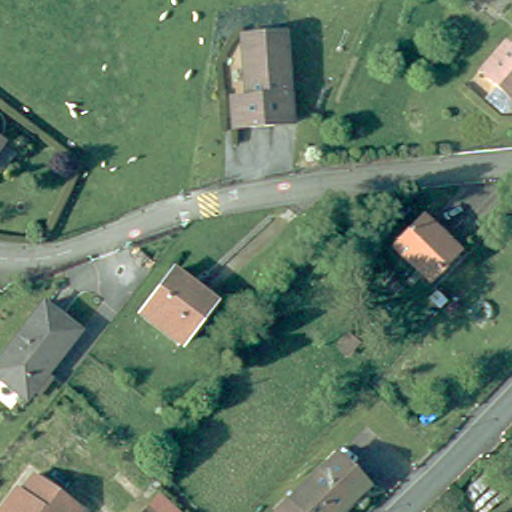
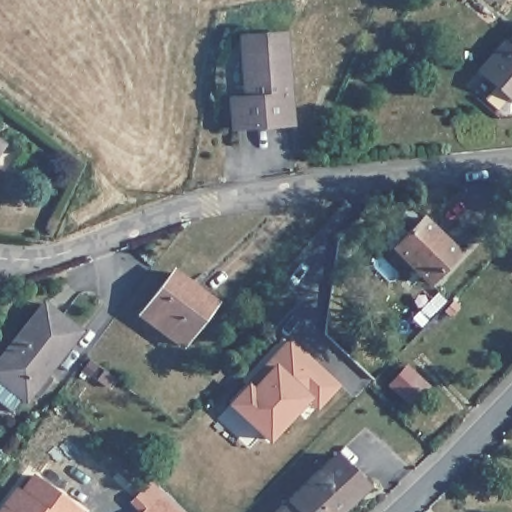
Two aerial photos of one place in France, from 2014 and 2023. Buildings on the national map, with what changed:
unchanged [(234,130),(233,101),(246,101),(244,52),(244,39),(287,37),(288,51),(291,128),(234,130)]
unchanged [(486,96),(498,81),(481,68),(504,39),(509,43),(512,39),(512,97),(503,109),(486,96)]
unchanged [(1,150),(0,151),(0,149),(1,150)]
unchanged [(422,215),(459,249),(431,281),(394,247),(422,215)]
unchanged [(209,302),(191,324),(196,329),(183,346),(142,314),(175,274),(209,302)]
unchanged [(73,332),(20,398),(0,381),(0,351),(38,304),(73,332)]
new [(339,386),(317,410),(309,401),(269,444),(228,404),(247,382),(251,386),(274,362),(269,357),(289,336),(339,386)]
unchanged [(286,501),(331,456),(358,482),(343,497),(347,502),(337,512),(298,512),(286,501)]
unchanged [(15,489),(19,492),(31,476),(77,512),(0,512),(0,509),(15,489)]
new [(159,493),(180,512),(143,512),(142,512),(159,493)]
unchanged [(298,512),(276,512),(286,501),(298,512)]

